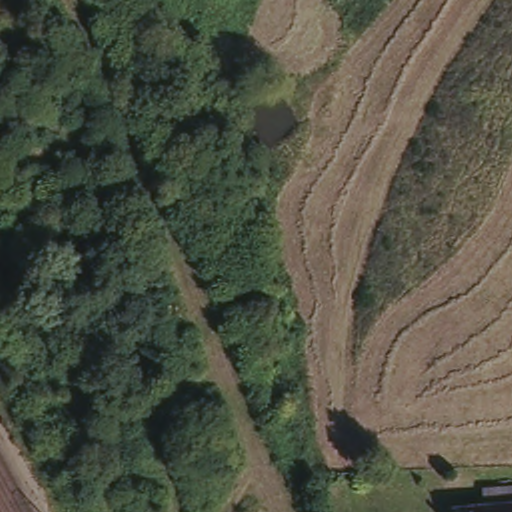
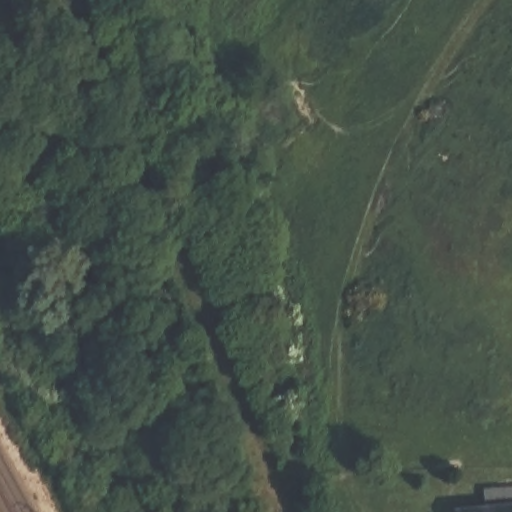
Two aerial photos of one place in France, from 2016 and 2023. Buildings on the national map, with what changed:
unchanged [(476,504),(476,487),(512,487),(512,512),(446,512),(445,503),(476,504)]

